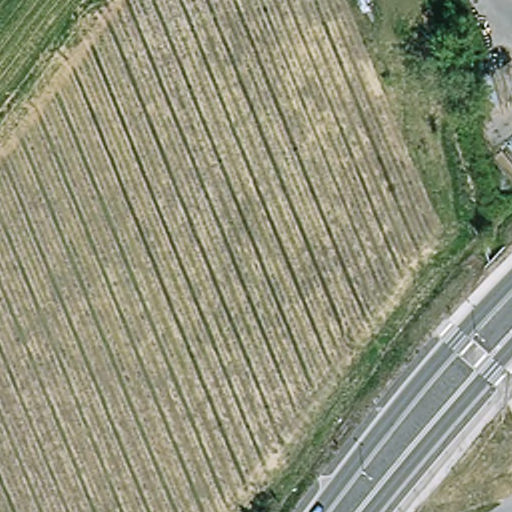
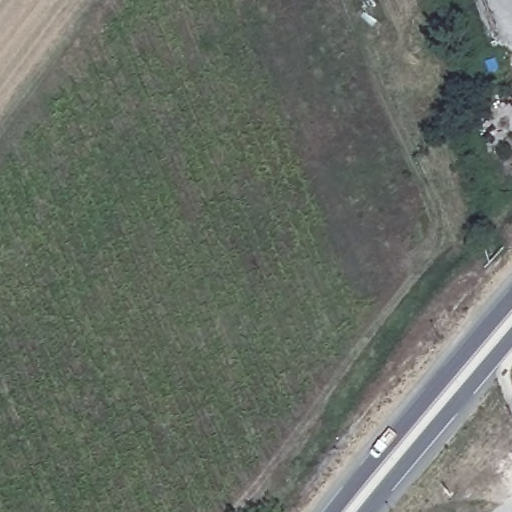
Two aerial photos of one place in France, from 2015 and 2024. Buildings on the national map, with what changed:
[]

